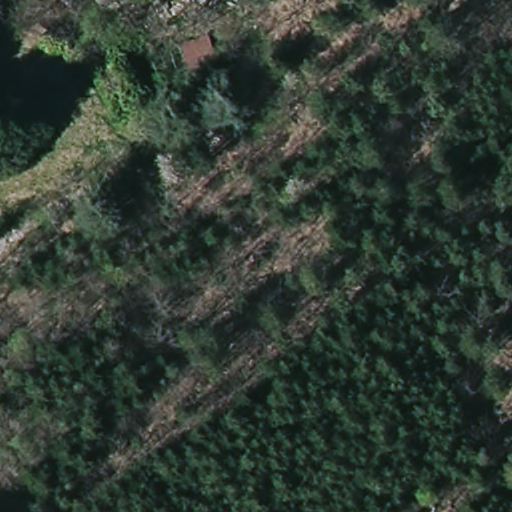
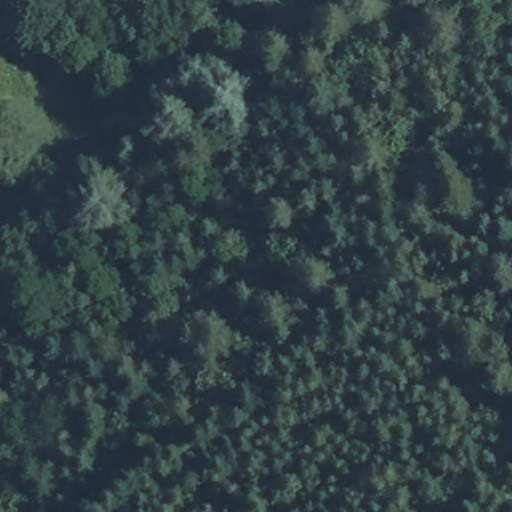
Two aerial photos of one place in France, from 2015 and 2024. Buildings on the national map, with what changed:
unchanged [(242,28),(248,50),(185,69),(179,42),(242,28)]

